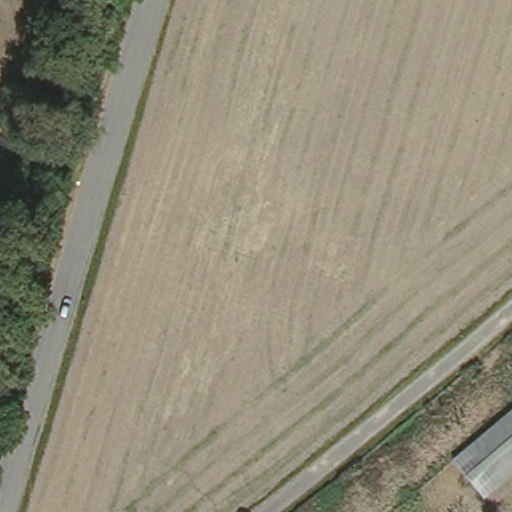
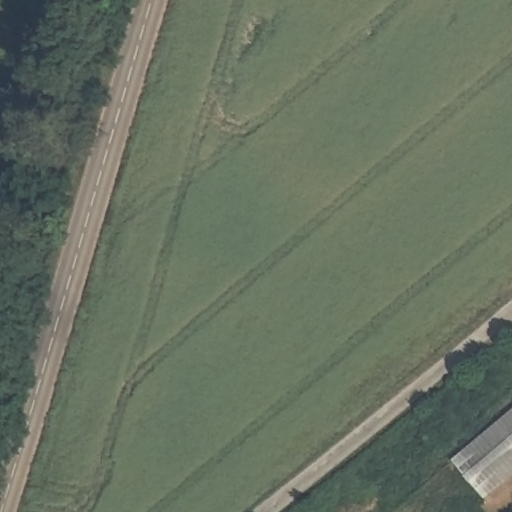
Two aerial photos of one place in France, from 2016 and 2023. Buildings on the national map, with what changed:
unchanged [(512,405),(512,480),(483,503),(447,458),(512,405)]

